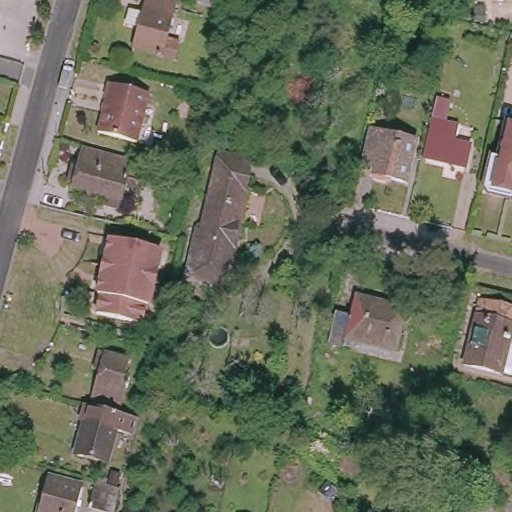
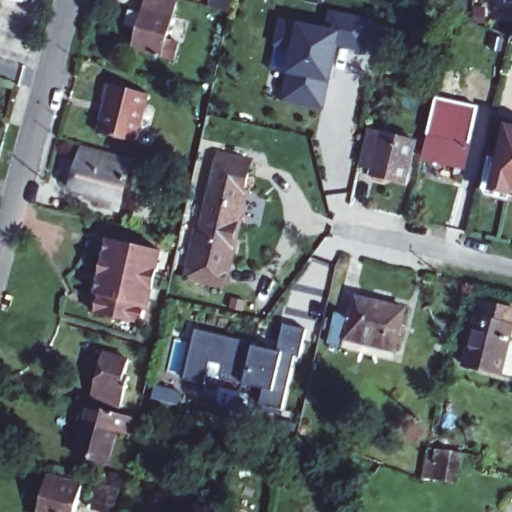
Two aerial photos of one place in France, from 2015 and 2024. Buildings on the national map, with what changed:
unchanged [(164,41),(176,44),(172,58),(131,47),(136,27),(124,23),(128,11),(139,14),(142,0),(168,0),(174,1),(164,41)]
unchanged [(193,2),(194,0),(214,0),(212,7),(193,2)]
new [(335,10),(376,18),(370,49),(341,43),(328,108),(288,100),(299,47),(293,73),(274,70),(279,43),(284,19),(331,28),(335,10)]
unchanged [(106,82),(146,92),(133,141),(95,131),(104,99),(102,98),(106,82)]
unchanged [(432,121),(448,125),(444,141),(471,147),(466,169),(424,160),(432,121)]
unchanged [(370,123),(420,135),(411,175),(394,171),(389,175),(379,172),(376,167),(378,159),(363,155),(370,123)]
unchanged [(511,128),(512,129),(512,195),(497,191),(511,128)]
unchanged [(100,199),(101,194),(94,192),(84,190),(86,184),(71,180),(81,142),(128,155),(118,193),(115,203),(100,199)]
unchanged [(211,192),(221,146),(254,154),(243,199),(211,192)]
unchanged [(199,222),(203,223),(211,192),(243,199),(225,281),(188,272),(199,222)]
unchanged [(166,244),(154,300),(153,299),(149,318),(101,307),(106,288),(103,288),(106,270),(103,269),(108,249),(111,250),(115,232),(166,244)]
unchanged [(407,305),(397,347),(348,336),(346,344),(330,339),(336,310),(352,314),(356,294),(407,305)]
unchanged [(512,310),(512,318),(506,342),(512,343),(512,375),(508,377),(498,374),(498,375),(461,366),(477,301),(512,310)]
new [(259,347),(259,349),(282,355),(289,327),(311,332),(291,415),(264,409),(268,392),(211,379),(209,388),(188,383),(199,333),(259,347)]
unchanged [(119,373),(125,375),(118,405),(88,398),(96,369),(89,367),(93,349),(100,351),(123,357),(119,373)]
unchanged [(98,407),(135,417),(131,433),(112,428),(103,460),(74,452),(83,419),(78,418),(83,403),(98,407)]
unchanged [(79,485),(72,512),(37,512),(46,476),(79,485)]
unchanged [(117,512),(97,512),(91,510),(98,486),(122,492),(117,512)]

